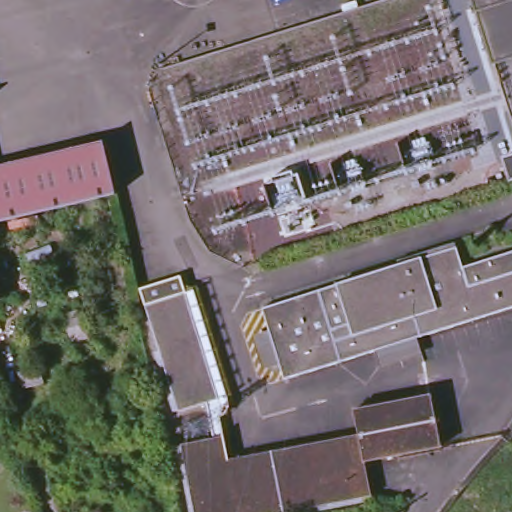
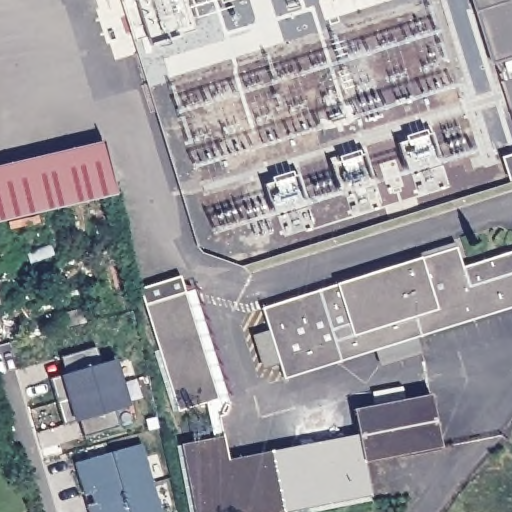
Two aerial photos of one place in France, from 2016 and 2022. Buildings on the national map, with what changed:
unchanged [(497,62),(476,0),(512,0),(512,57),(497,62)]
unchanged [(103,142),(114,192),(108,193),(0,220),(0,167),(96,142),(103,142)]
unchanged [(508,179),(502,162),(512,159),(512,183),(509,184),(508,179)]
unchanged [(253,337),(271,332),(264,307),(318,291),(456,247),(462,268),(463,268),(512,253),(512,309),(419,337),(424,353),(386,366),(381,348),(339,361),(286,377),(282,365),(264,371),(253,337)]
unchanged [(226,402),(227,402),(227,403),(228,404),(228,406),(228,407),(228,408),(227,410),(227,411),(226,412),(225,413),(224,415),(223,415),(223,416),(232,460),(361,436),(356,411),(431,396),(441,448),(366,463),(371,498),(296,512),(195,512),(181,445),(214,437),(205,402),(177,411),(145,306),(143,297),(140,288),(179,276),(182,285),(184,293),(185,295),(193,292),(226,402)]
new [(101,364),(118,361),(130,405),(114,410),(118,426),(83,436),(79,420),(65,423),(53,379),(65,375),(101,364)]
new [(140,443),(160,512),(89,512),(86,503),(83,495),(74,462),(140,443)]
demolished [(482,512),(482,509),(494,510),(494,495),(512,495),(512,512),(482,512)]

